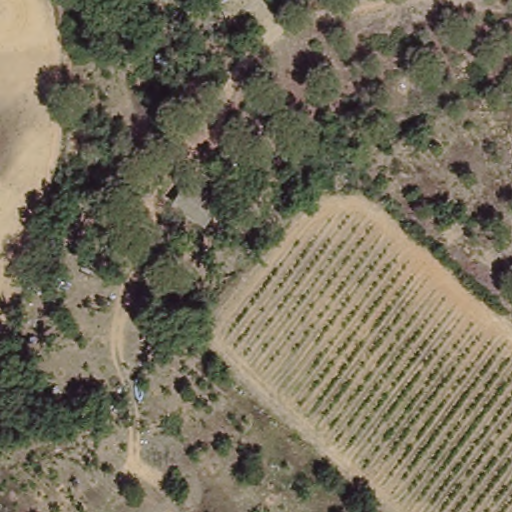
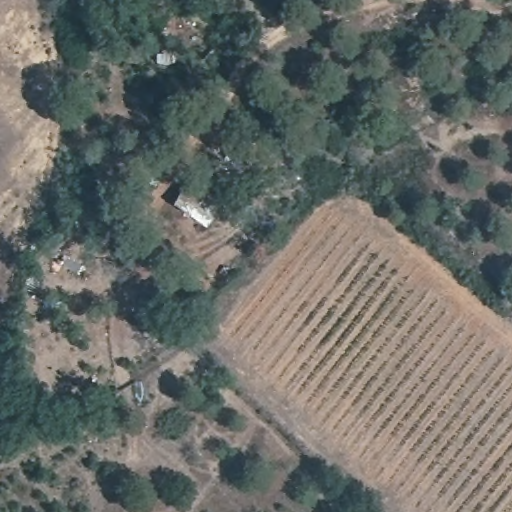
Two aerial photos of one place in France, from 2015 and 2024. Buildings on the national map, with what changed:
unchanged [(194,182),(226,205),(209,231),(176,210),(194,182)]

